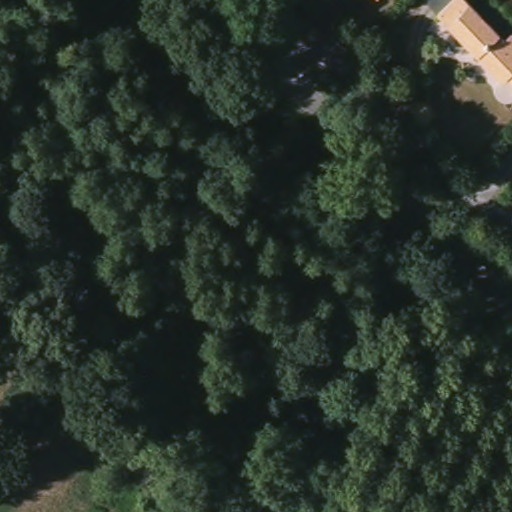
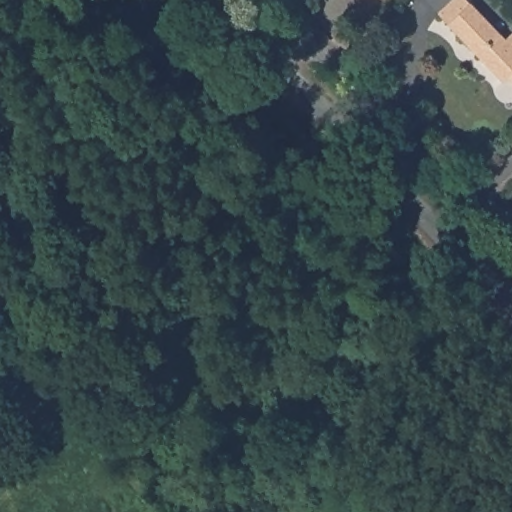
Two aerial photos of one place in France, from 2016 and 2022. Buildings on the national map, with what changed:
unchanged [(512,38),(512,78),(508,81),(443,14),(457,0),(471,0),(510,40),(512,38)]

